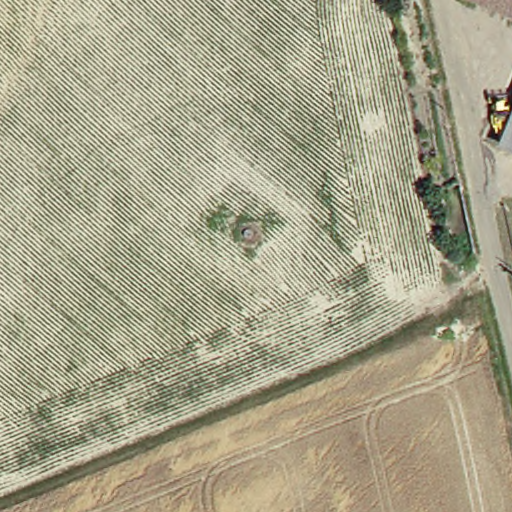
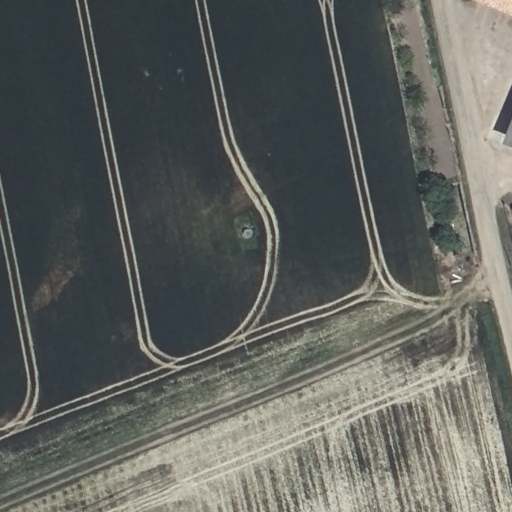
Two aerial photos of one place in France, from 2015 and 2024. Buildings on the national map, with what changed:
unchanged [(489,0),(512,0),(512,10),(489,0)]

